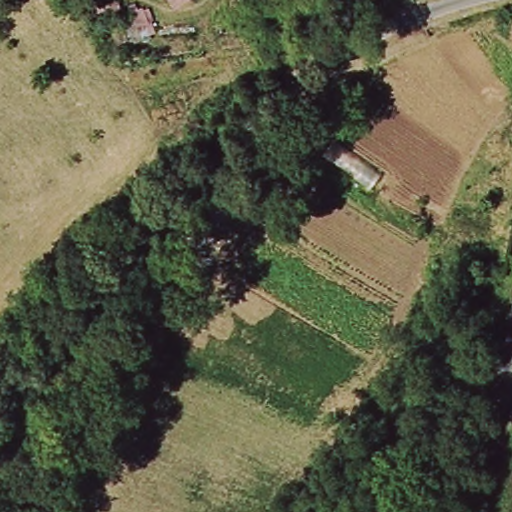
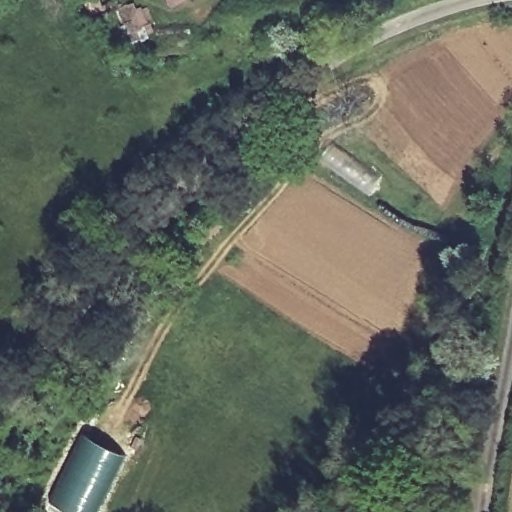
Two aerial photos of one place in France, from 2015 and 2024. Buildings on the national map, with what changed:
new [(93,448),(109,456),(120,450),(96,508),(86,503),(82,512),(73,512),(60,506),(72,481),(67,478),(81,449),(90,453),(93,448)]

